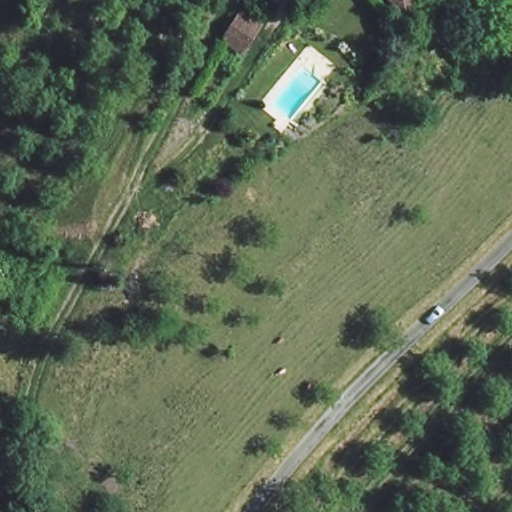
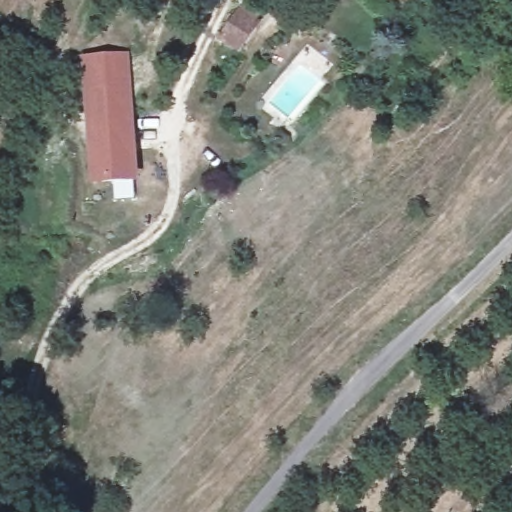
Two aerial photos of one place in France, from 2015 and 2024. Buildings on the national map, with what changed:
unchanged [(402,10),(394,0),(415,0),(402,10)]
unchanged [(221,45),(247,6),(263,18),(237,54),(221,45)]
new [(130,53),(139,183),(91,187),(80,57),(130,53)]

